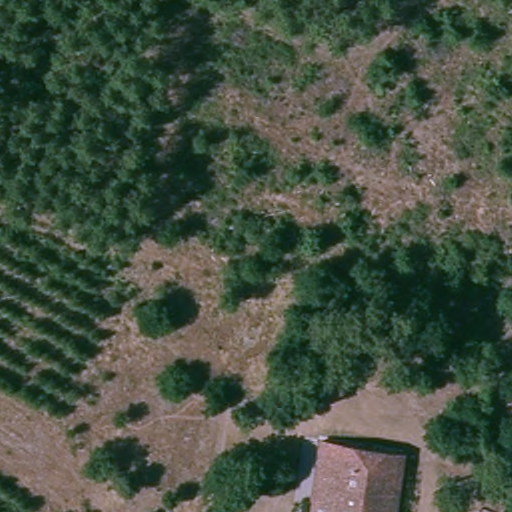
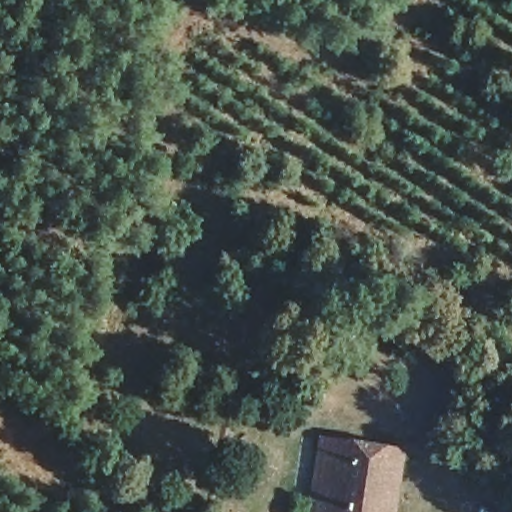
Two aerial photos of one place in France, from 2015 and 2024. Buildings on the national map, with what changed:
unchanged [(317,512),(319,446),(332,447),(330,512),(317,512)]
unchanged [(400,450),(400,454),(398,512),(330,512),(332,447),(400,450)]

